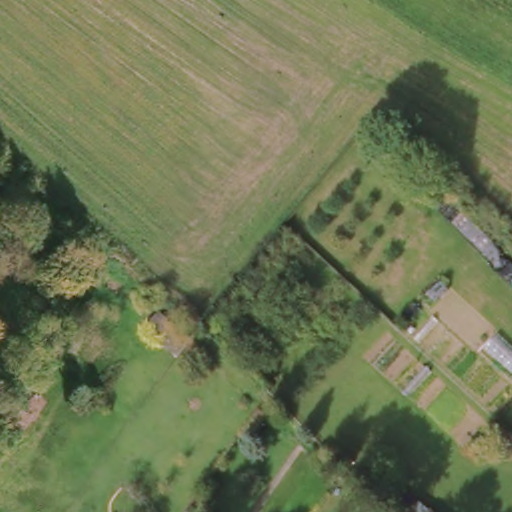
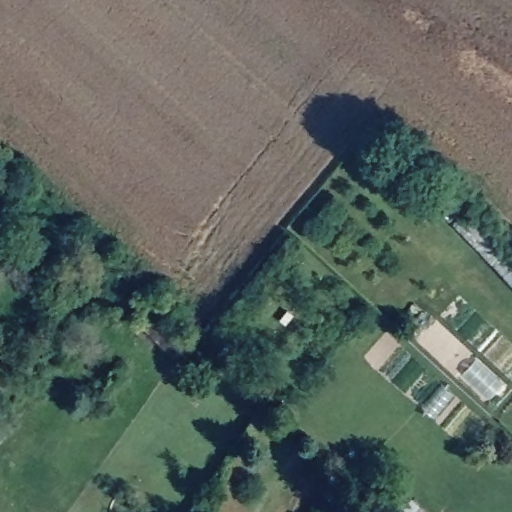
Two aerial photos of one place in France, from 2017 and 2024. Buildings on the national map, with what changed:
unchanged [(175,357),(143,329),(159,312),(188,337),(175,357)]

